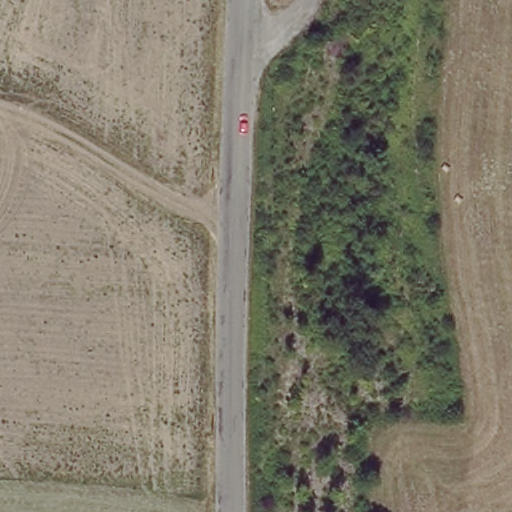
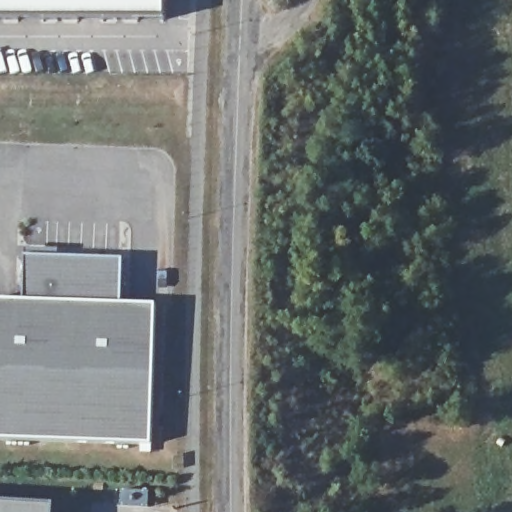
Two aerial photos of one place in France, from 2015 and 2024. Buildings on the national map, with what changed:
new [(0,18),(0,0),(164,0),(164,18),(0,18)]
new [(151,444),(0,440),(0,300),(25,302),(25,255),(124,259),(123,304),(156,305),(151,444)]

